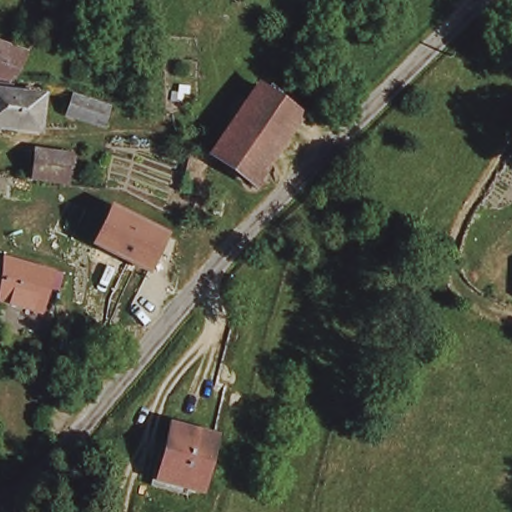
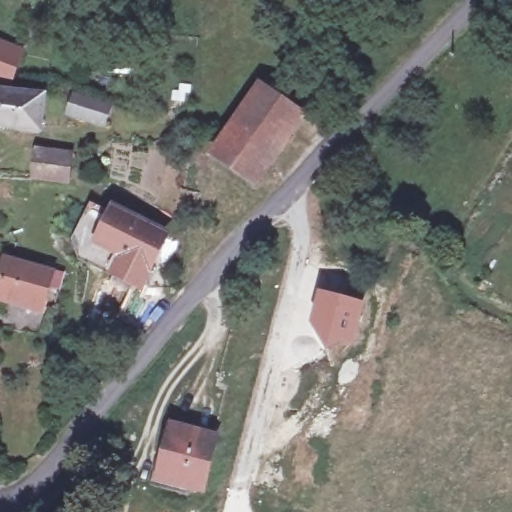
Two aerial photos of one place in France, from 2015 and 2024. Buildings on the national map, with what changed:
unchanged [(14,74),(0,69),(0,36),(24,45),(24,50),(14,74)]
unchanged [(254,182),(213,153),(232,127),(246,109),(254,97),(262,87),(301,117),(254,182)]
unchanged [(8,97),(36,100),(33,131),(0,128),(0,89),(9,90),(8,97)]
unchanged [(68,116),(73,99),(103,109),(98,126),(68,116)]
unchanged [(41,145),(74,151),(70,177),(60,175),(37,172),(41,145)]
unchanged [(172,231),(153,272),(93,246),(113,202),(172,231)]
unchanged [(4,300),(10,268),(10,262),(27,267),(46,273),(48,267),(61,272),(59,277),(48,313),(4,300)]
new [(319,290),(364,301),(351,346),(344,346),(330,353),(310,322),(319,290)]
unchanged [(158,480),(161,469),(169,436),(179,437),(183,421),(223,431),(209,482),(198,480),(195,490),(158,480)]

